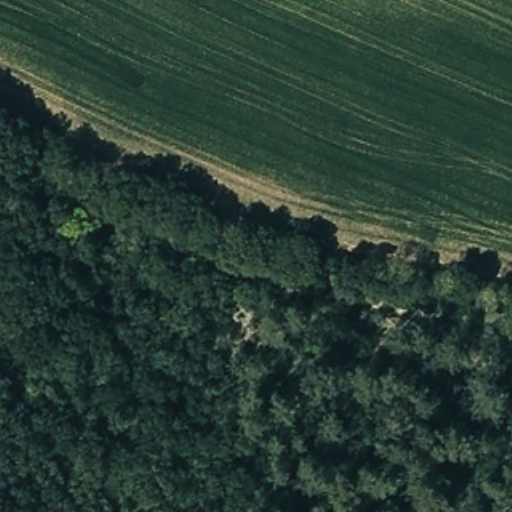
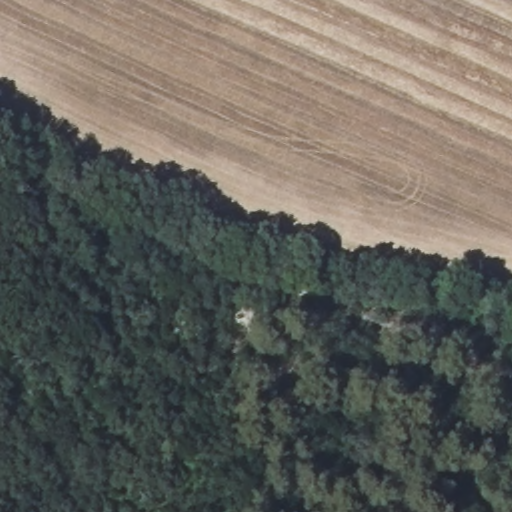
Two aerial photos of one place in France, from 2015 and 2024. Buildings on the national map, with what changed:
[]

